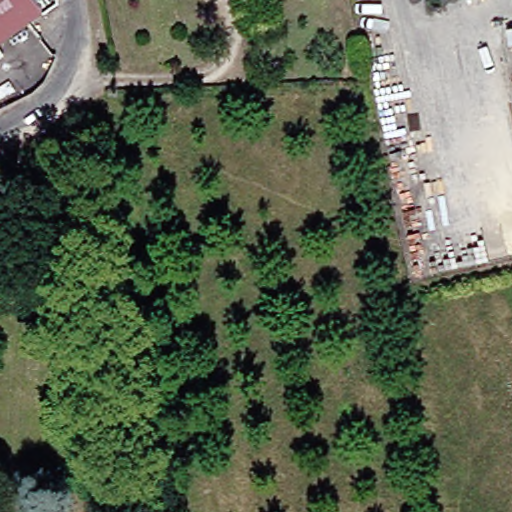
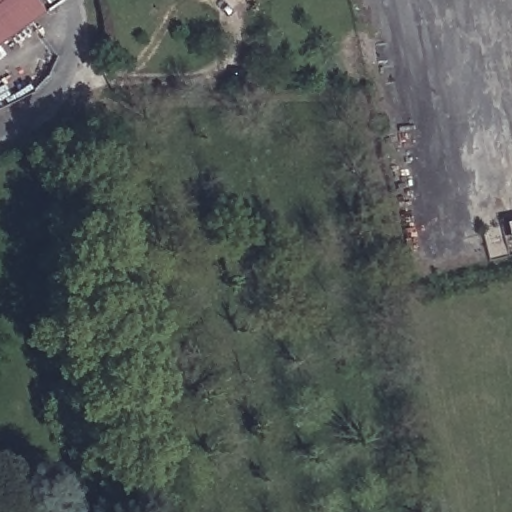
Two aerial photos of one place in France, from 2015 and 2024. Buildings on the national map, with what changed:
unchanged [(47,12),(0,46),(0,0),(60,0),(60,2),(47,12)]

